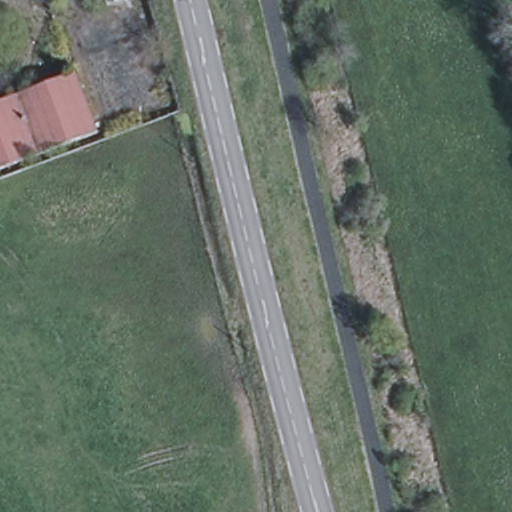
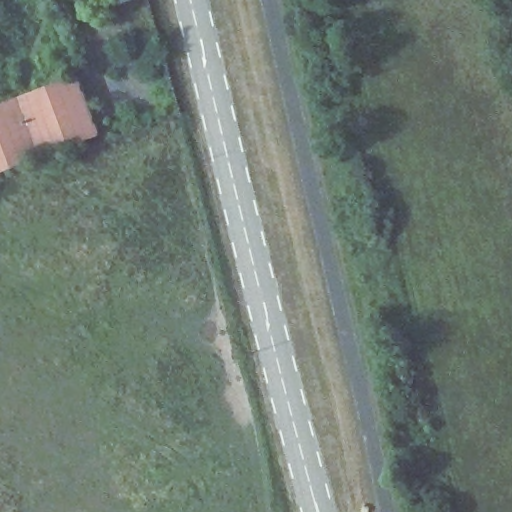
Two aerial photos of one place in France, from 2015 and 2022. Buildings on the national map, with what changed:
unchanged [(104,0),(122,0),(106,5),(104,0)]
unchanged [(80,71),(102,130),(0,169),(0,102),(7,100),(80,71)]

